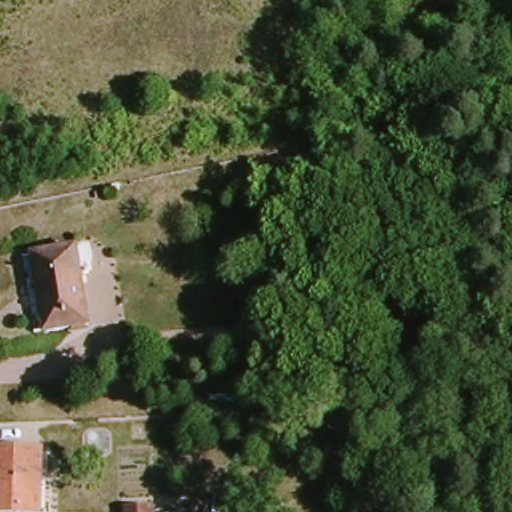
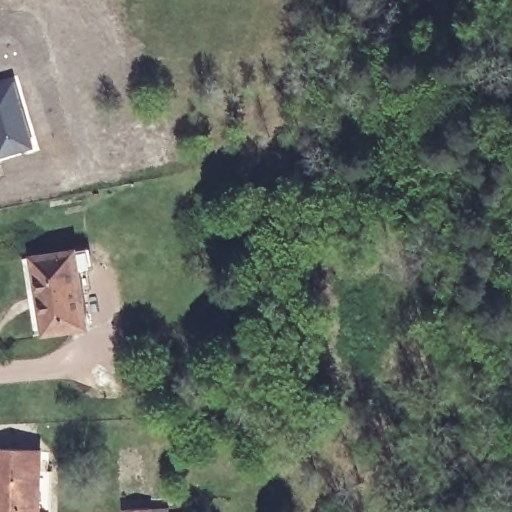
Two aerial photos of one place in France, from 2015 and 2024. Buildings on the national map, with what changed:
new [(15,74),(36,146),(0,156),(0,76),(15,74)]
unchanged [(90,304),(33,305),(28,260),(85,255),(90,304)]
unchanged [(94,334),(35,338),(33,305),(90,304),(94,334)]
unchanged [(40,510),(40,512),(0,512),(0,448),(45,452),(40,510)]
unchanged [(124,510),(171,508),(173,512),(124,512),(124,510)]

